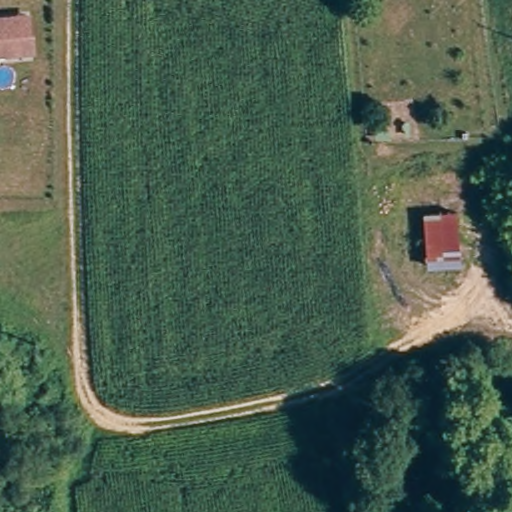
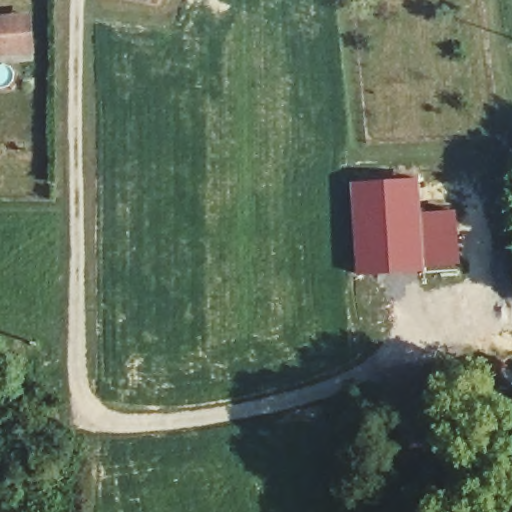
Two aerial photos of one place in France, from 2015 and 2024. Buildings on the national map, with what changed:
unchanged [(13,19),(32,16),(35,51),(16,53),(0,54),(0,19),(13,19)]
new [(425,270),(358,276),(351,182),(419,176),(426,215),(425,270)]
unchanged [(426,215),(459,215),(458,270),(425,270),(426,215)]

